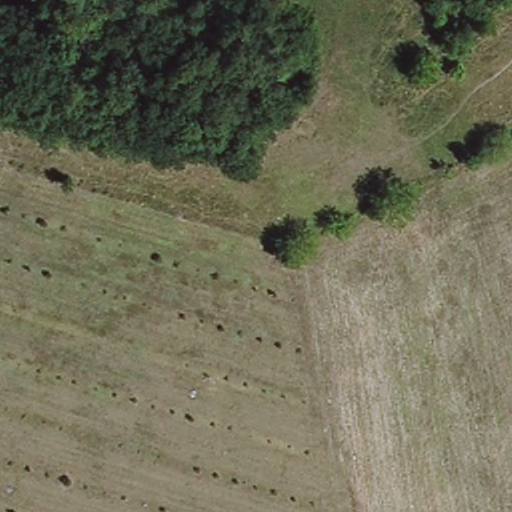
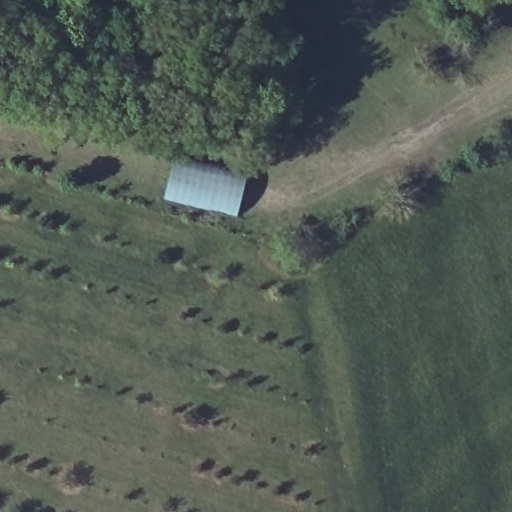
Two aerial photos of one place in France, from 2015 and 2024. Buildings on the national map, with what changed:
new [(173,159),(246,176),(236,216),(162,199),(173,159)]

